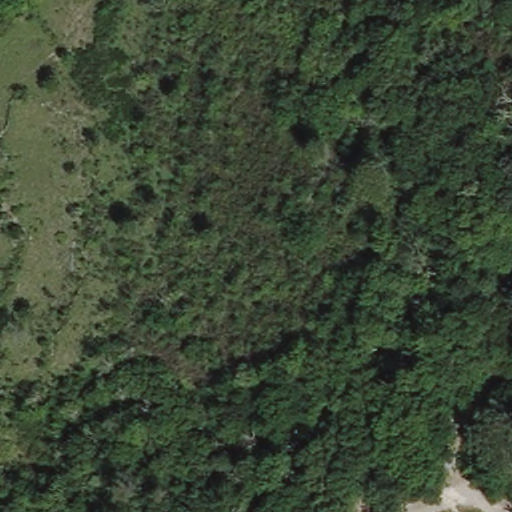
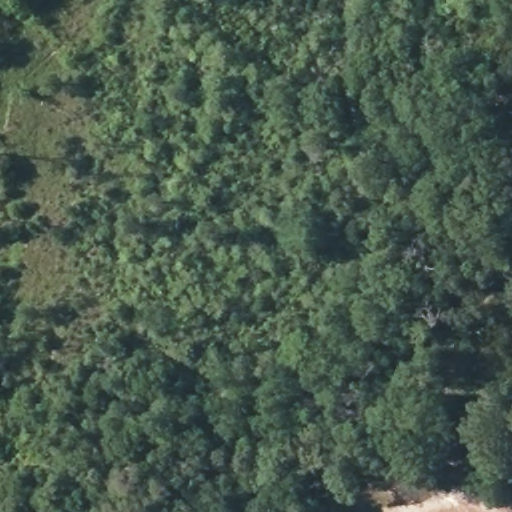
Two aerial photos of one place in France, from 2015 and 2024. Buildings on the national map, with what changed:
unchanged [(192,343),(175,340),(176,322),(195,325),(192,343)]

